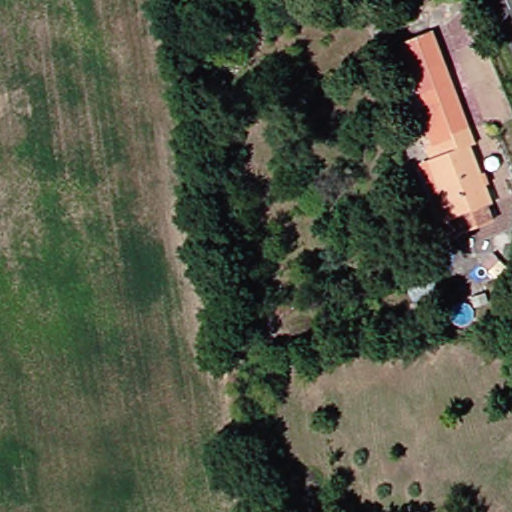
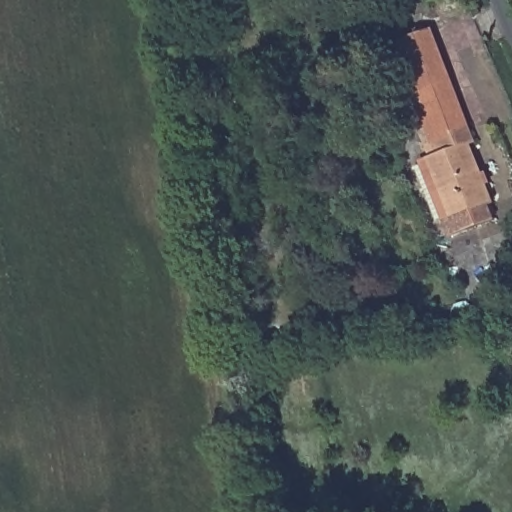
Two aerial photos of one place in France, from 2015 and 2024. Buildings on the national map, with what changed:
unchanged [(486,201),(435,222),(429,225),(406,167),(413,165),(420,162),(403,119),(390,87),(410,79),(397,43),(424,33),(460,128),(486,201)]

